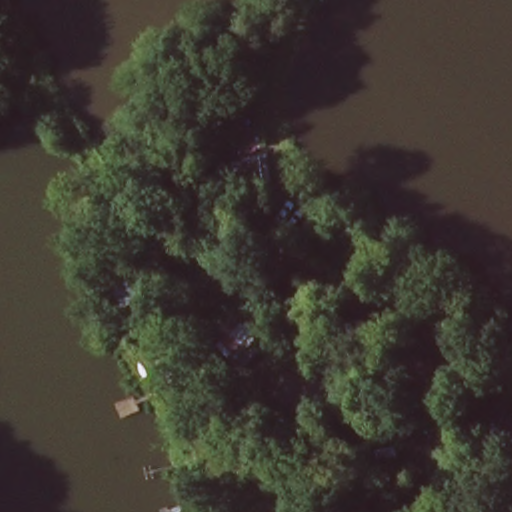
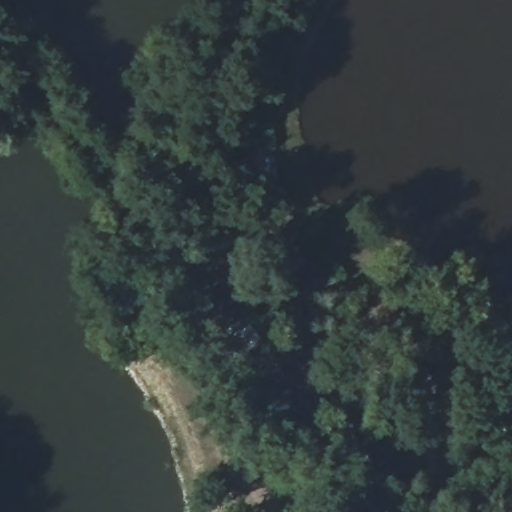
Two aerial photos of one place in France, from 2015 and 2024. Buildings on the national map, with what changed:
unchanged [(266,173),(247,173),(248,147),(265,147),(266,173)]

